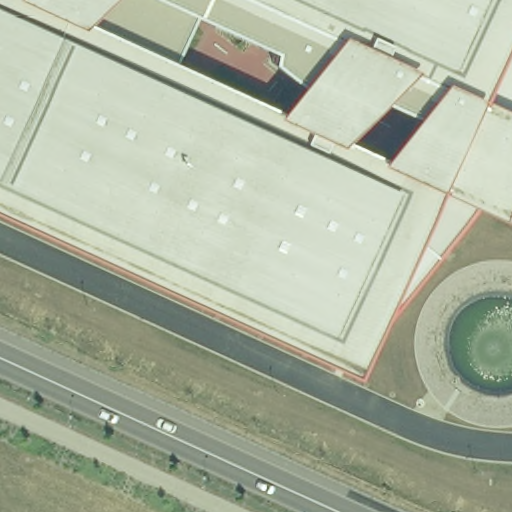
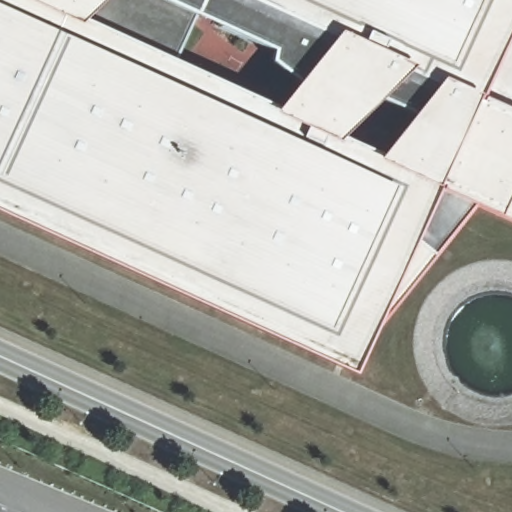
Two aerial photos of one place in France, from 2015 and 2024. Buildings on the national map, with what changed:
unchanged [(475,206),(379,323),(355,374),(0,212),(0,0),(512,0),(512,223),(475,206)]

